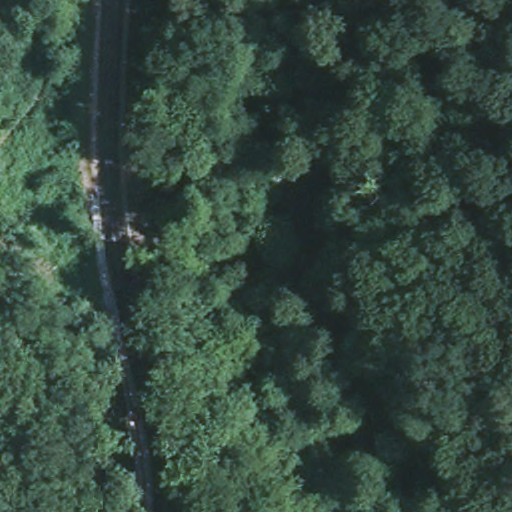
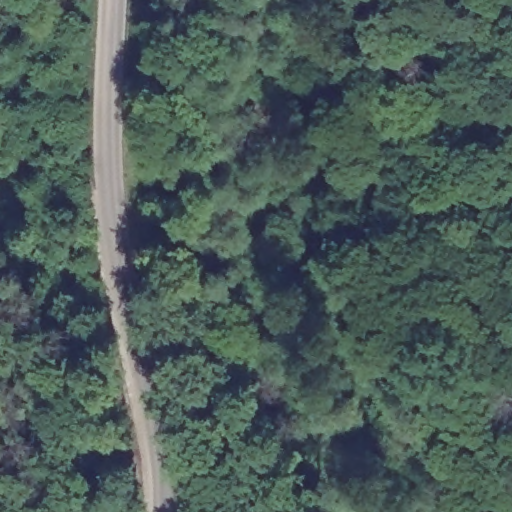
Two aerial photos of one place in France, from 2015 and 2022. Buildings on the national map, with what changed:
unchanged [(320,417),(310,425),(296,405),(321,388),(375,348),(389,369),(383,373),(368,383),(380,400),(343,425),(332,433),(320,417)]

